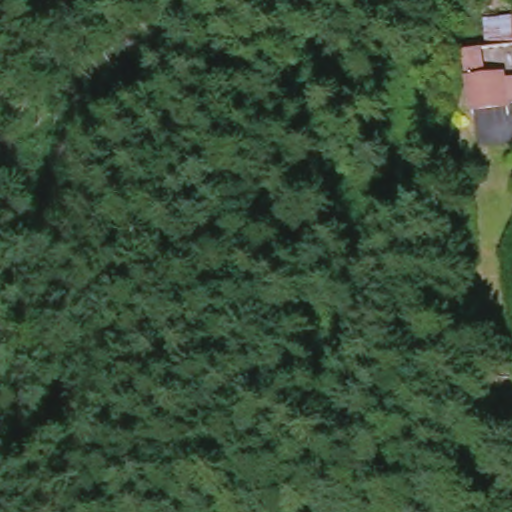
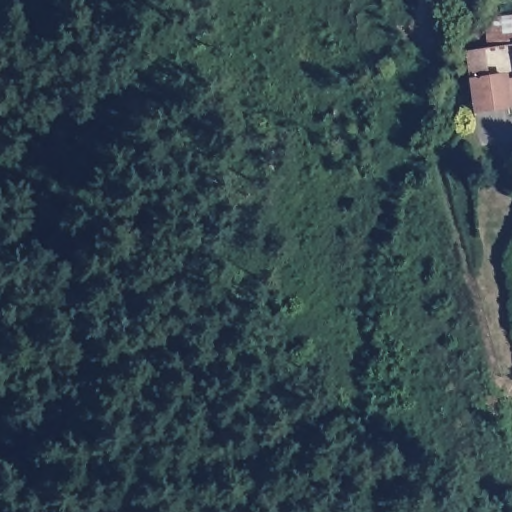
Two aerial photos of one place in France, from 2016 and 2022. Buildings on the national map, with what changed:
unchanged [(485,49),(485,76),(500,74),(500,77),(512,76),(512,95),(508,100),(500,100),(500,102),(468,105),(468,77),(469,51),(485,49)]

